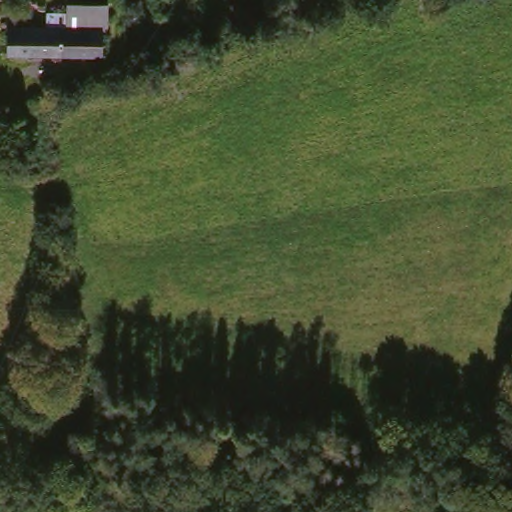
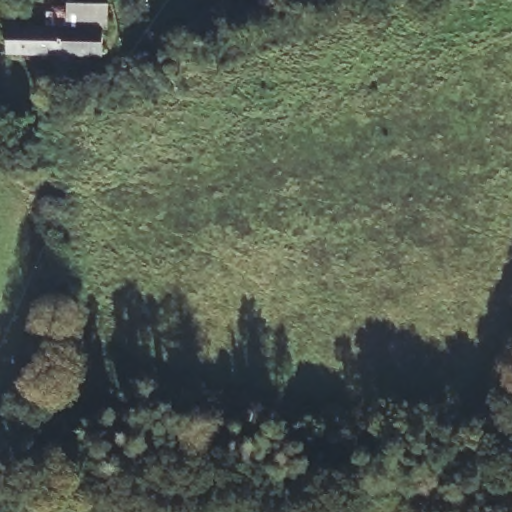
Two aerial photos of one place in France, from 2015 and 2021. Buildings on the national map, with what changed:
unchanged [(16,46),(16,5),(32,5),(31,21),(69,22),(73,22),(74,4),(78,4),(114,5),(113,23),(112,48),(16,46)]

